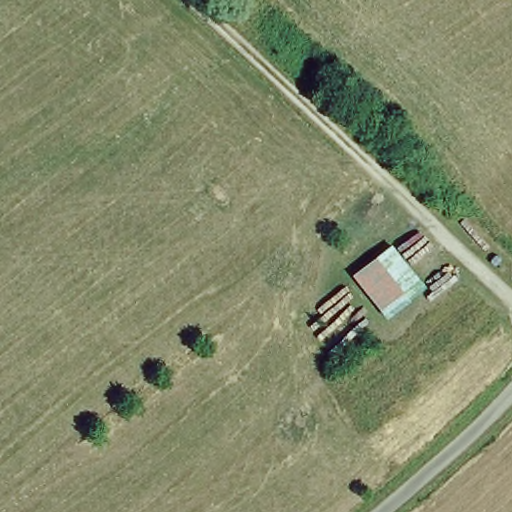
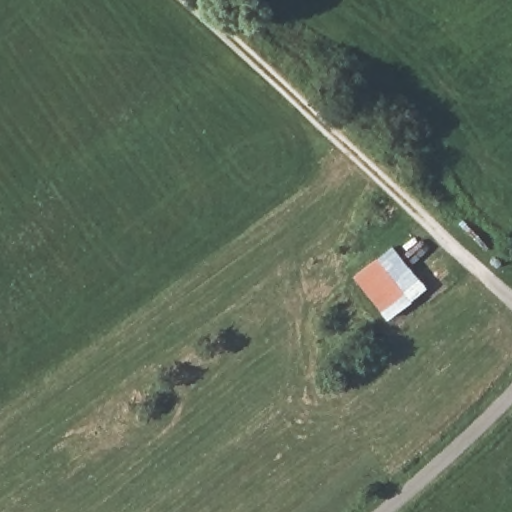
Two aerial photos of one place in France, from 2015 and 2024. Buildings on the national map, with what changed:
unchanged [(389,246),(425,290),(385,320),(348,278),(389,246)]

